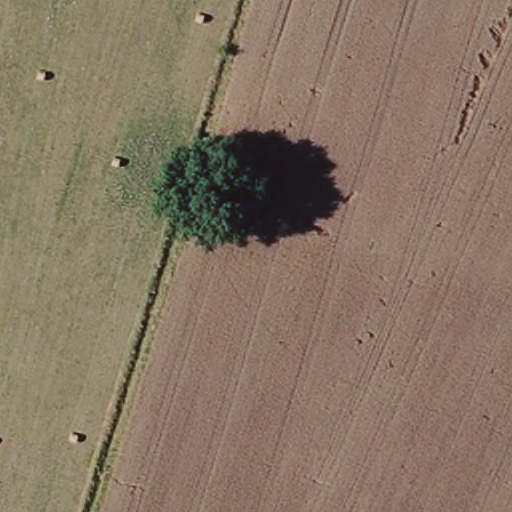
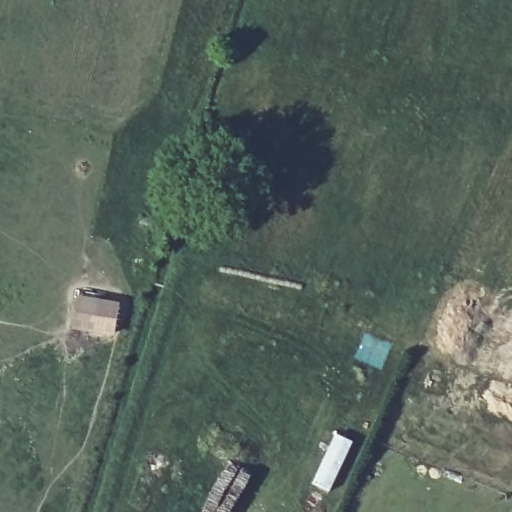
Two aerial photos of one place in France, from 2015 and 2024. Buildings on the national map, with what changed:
new [(119,302),(113,337),(70,329),(77,294),(119,302)]

